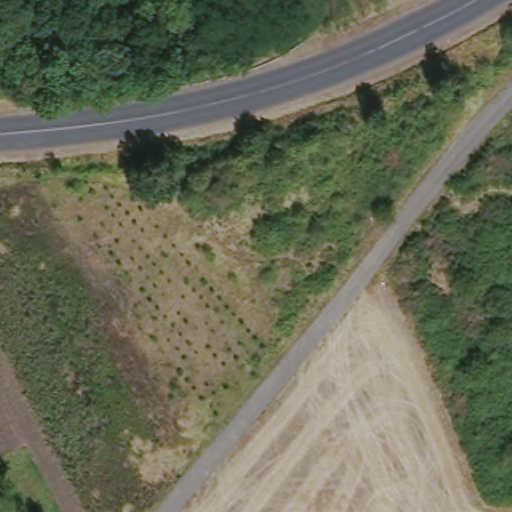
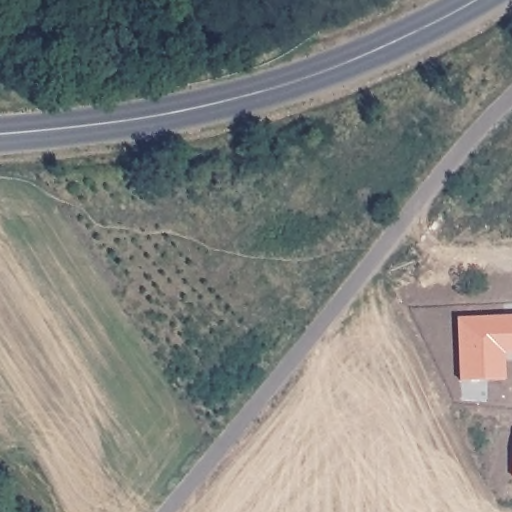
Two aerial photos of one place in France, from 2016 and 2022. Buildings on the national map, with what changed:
new [(507,381),(461,381),(457,317),(512,315),(512,352),(505,353),(507,381)]

